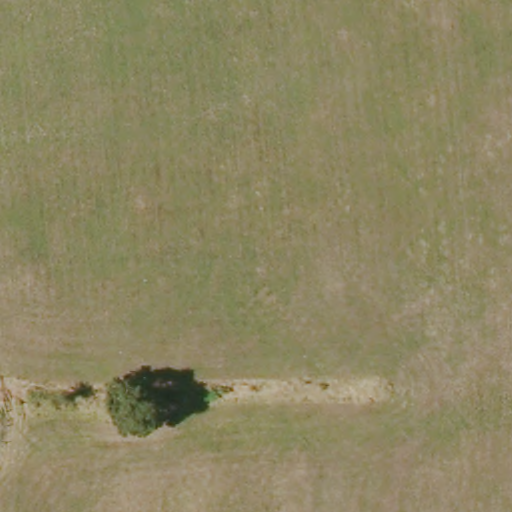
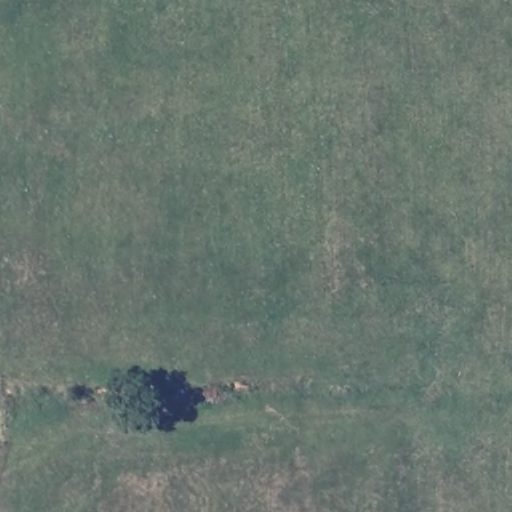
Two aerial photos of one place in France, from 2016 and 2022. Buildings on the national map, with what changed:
[]

